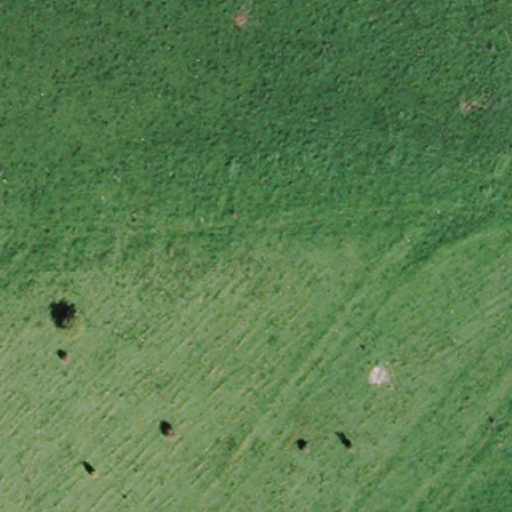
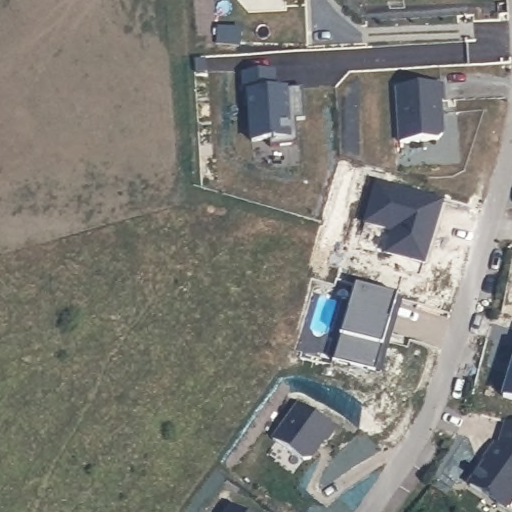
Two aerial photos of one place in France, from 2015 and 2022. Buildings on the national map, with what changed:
new [(277,78),(279,101),(285,100),(285,96),(306,95),(308,126),(300,127),(300,151),(272,153),(272,145),(254,146),(252,111),(247,111),(245,80),(277,78)]
new [(445,86),(445,103),(442,103),(444,136),(439,142),(401,144),(400,88),(445,86)]
new [(428,267),(424,266),(386,254),(393,231),(363,223),(375,182),(445,201),(448,203),(428,267)]
new [(356,283),(398,296),(375,373),(334,360),(356,283)]
new [(512,366),(512,402),(502,400),(512,366)]
new [(301,403),(338,429),(328,443),(326,441),(313,459),(306,461),(275,439),(301,403)]
new [(469,486),(472,479),(478,471),(486,461),(484,459),(496,442),(500,445),(506,421),(512,422),(512,503),(506,512),(469,486)]
new [(235,500),(252,512),(227,512),(235,500)]

